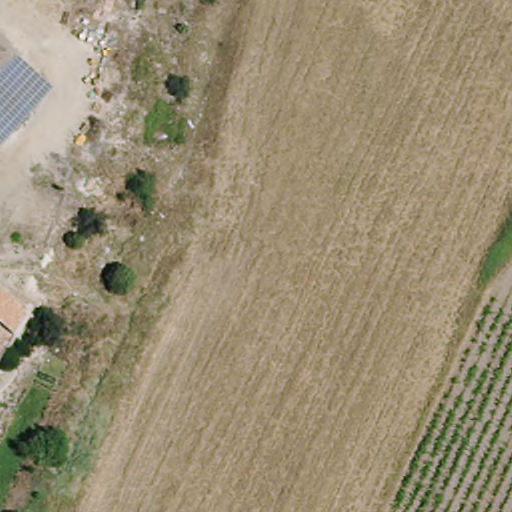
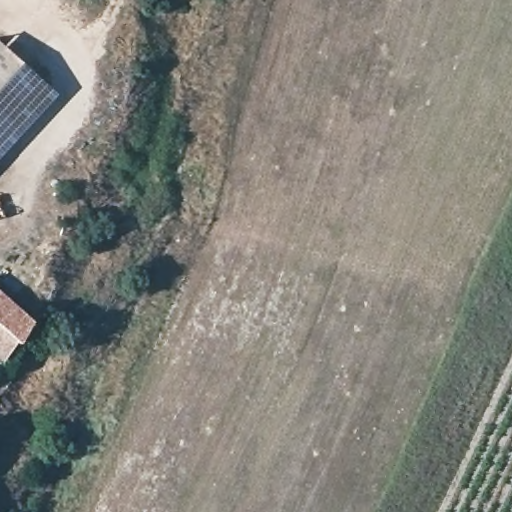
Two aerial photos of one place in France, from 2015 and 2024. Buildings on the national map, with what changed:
unchanged [(50,80),(0,135),(0,39),(50,80)]
unchanged [(31,320),(19,340),(0,323),(0,294),(31,320)]

